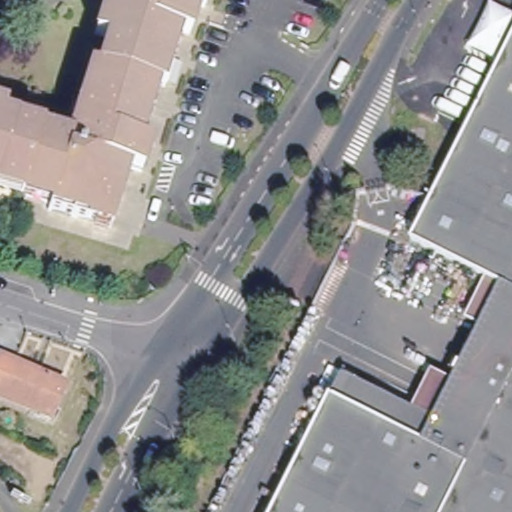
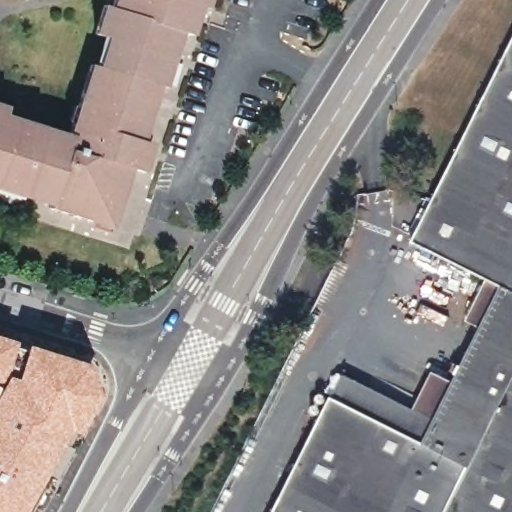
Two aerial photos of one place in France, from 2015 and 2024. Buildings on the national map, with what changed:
unchanged [(51,210),(52,206),(0,187),(0,107),(8,110),(6,117),(72,140),(96,67),(101,68),(110,40),(99,36),(107,7),(114,9),(117,0),(211,0),(207,11),(204,10),(194,38),(185,36),(170,89),(166,89),(149,143),(155,145),(145,174),(135,171),(125,198),(114,231),(51,210)]
unchanged [(422,394),(442,356),(465,367),(493,311),(485,307),(497,284),(412,241),(512,42),(512,512),(274,512),(342,378),(411,415),(422,394)]
new [(4,372),(0,378),(0,335),(15,340),(4,372)]
new [(10,375),(23,342),(62,355),(82,363),(86,368),(95,392),(91,401),(81,421),(50,461),(24,512),(0,512),(0,378),(4,372),(10,375)]
unchanged [(353,358),(422,394),(411,415),(342,378),(353,358)]
demolished [(59,377),(45,410),(0,392),(0,385),(10,360),(59,377)]

